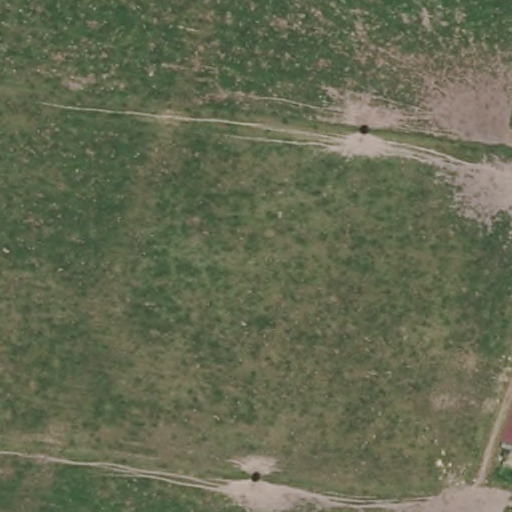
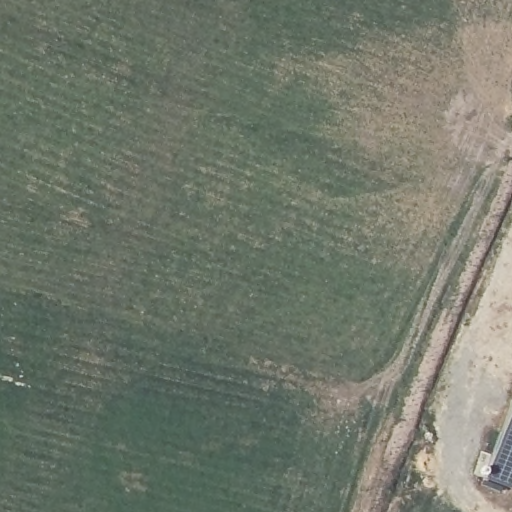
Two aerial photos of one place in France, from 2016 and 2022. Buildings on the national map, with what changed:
new [(486,477),(512,410),(512,487),(486,477)]

